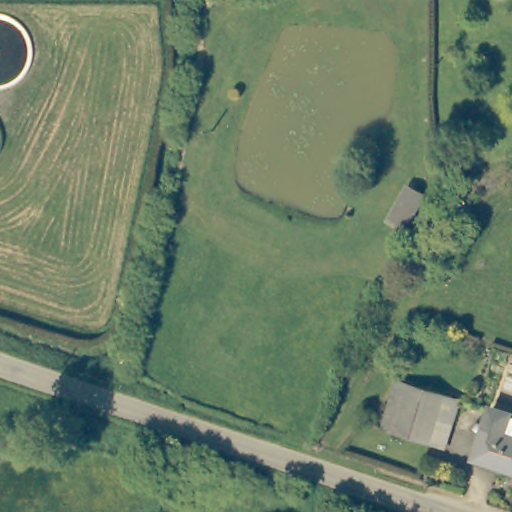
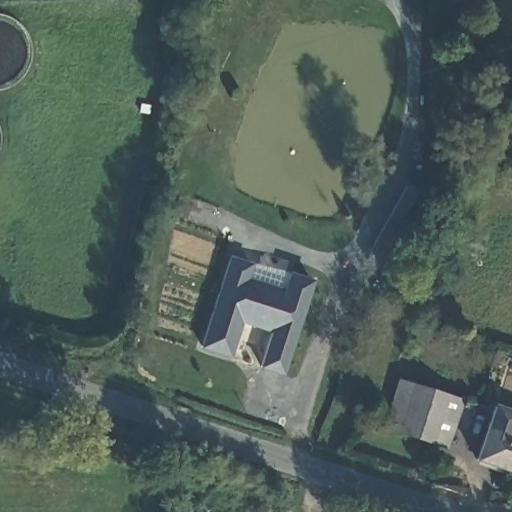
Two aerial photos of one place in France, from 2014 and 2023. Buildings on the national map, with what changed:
unchanged [(403,225),(385,215),(404,181),(424,191),(403,225)]
new [(284,376),(258,368),(270,331),(240,323),(227,359),(198,349),(231,256),(254,265),(248,280),(283,291),(290,272),(314,280),(284,376)]
unchanged [(430,440),(384,425),(397,379),(445,392),(462,397),(446,445),(430,440)]
unchanged [(492,405),(512,412),(512,469),(474,456),(492,405)]

